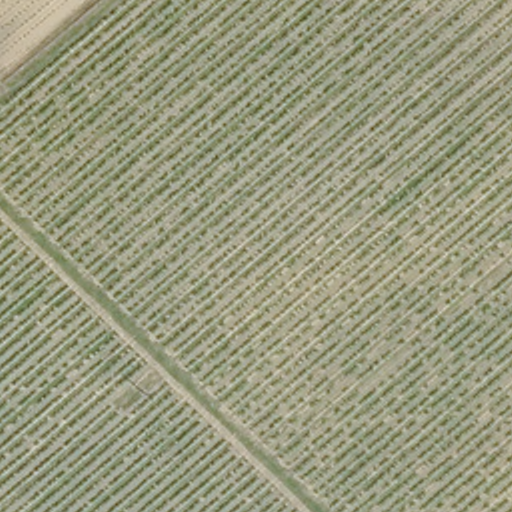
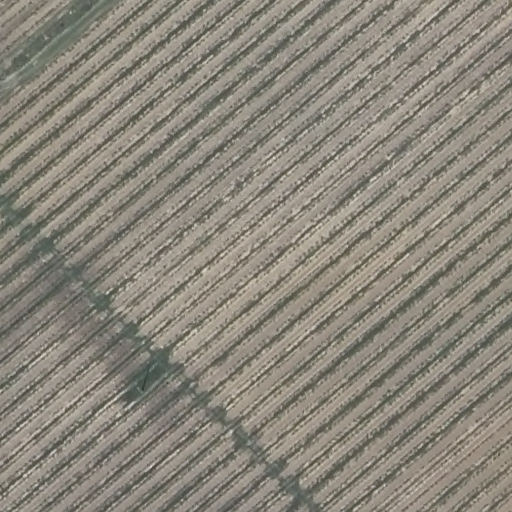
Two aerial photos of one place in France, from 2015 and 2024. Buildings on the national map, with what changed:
[]

